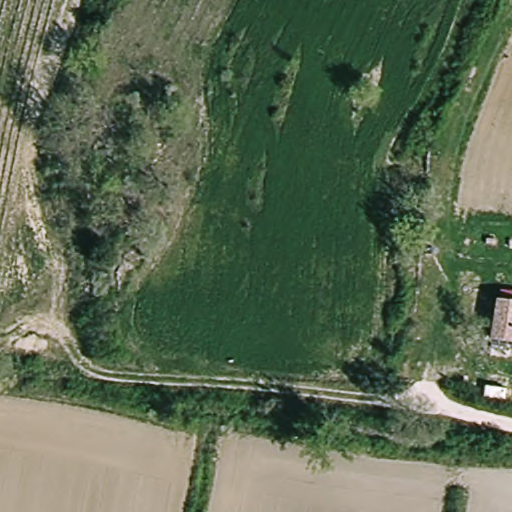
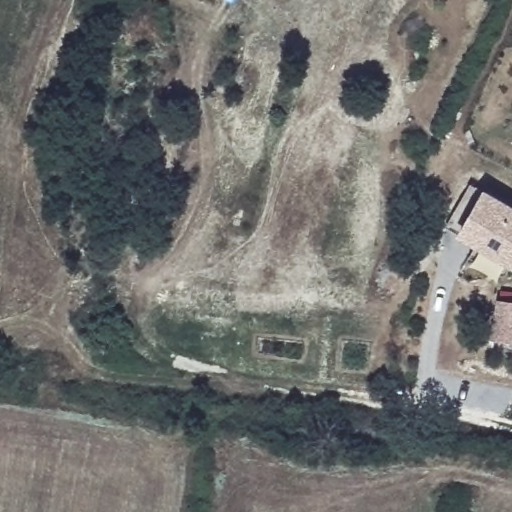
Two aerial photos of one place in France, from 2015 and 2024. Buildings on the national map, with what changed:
new [(512,269),(456,235),(482,188),(512,205),(512,269)]
unchanged [(505,296),(512,297),(512,340),(493,335),(505,296)]

